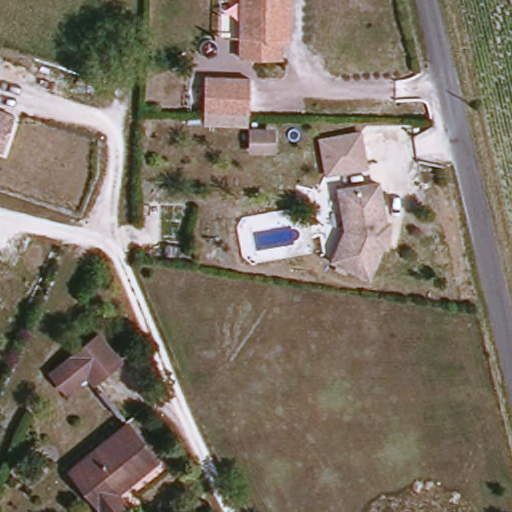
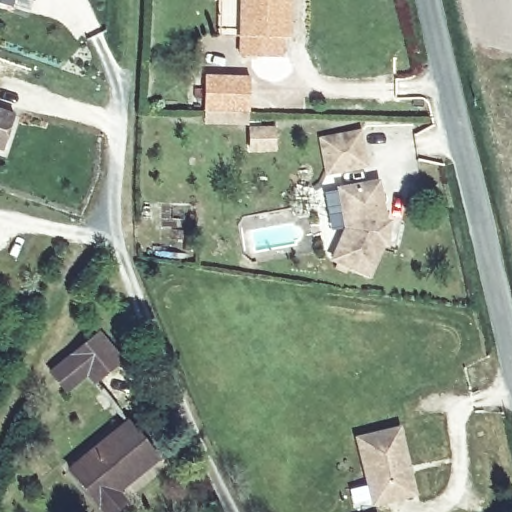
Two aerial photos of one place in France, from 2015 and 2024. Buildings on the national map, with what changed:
new [(0,8),(0,0),(14,0),(11,11),(0,8)]
unchanged [(281,55),(240,54),(242,0),(289,0),(287,36),(281,36),(281,55)]
unchanged [(206,80),(251,80),(250,115),(206,114),(206,80)]
unchanged [(0,151),(0,108),(16,114),(3,152),(0,151)]
unchanged [(247,146),(247,124),(266,127),(272,129),(272,146),(266,146),(247,146)]
unchanged [(362,127),(370,166),(326,176),(318,135),(362,127)]
unchanged [(388,243),(384,242),(370,273),(333,257),(347,226),(340,186),(379,180),(386,220),(391,220),(388,243)]
unchanged [(52,375),(60,368),(99,335),(119,358),(92,381),(87,375),(75,386),(66,392),(52,375)]
unchanged [(130,425),(160,462),(119,495),(128,505),(120,512),(103,512),(71,473),(130,425)]
new [(416,494),(370,505),(355,437),(400,425),(416,494)]

